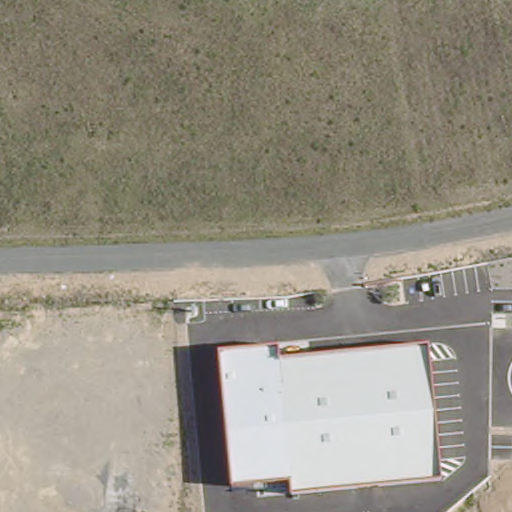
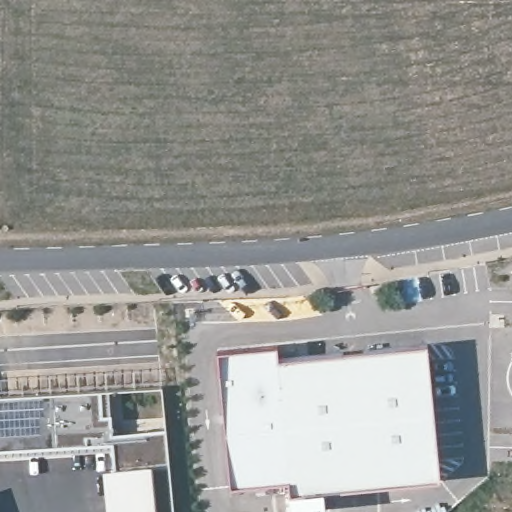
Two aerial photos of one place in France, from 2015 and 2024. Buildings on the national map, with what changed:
unchanged [(277,345),(278,360),(427,344),(438,478),(292,492),(291,478),(232,484),(220,351),(277,345)]
new [(105,470),(114,469),(112,446),(0,452),(0,397),(163,387),(167,432),(176,512),(108,512),(105,470)]

